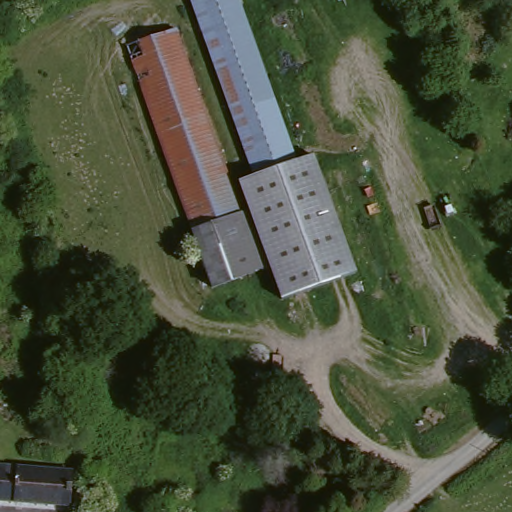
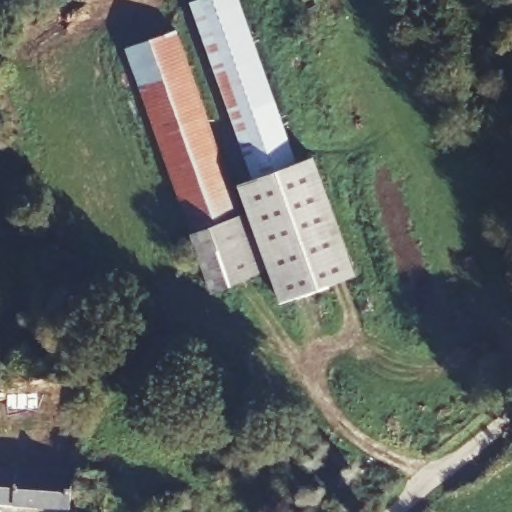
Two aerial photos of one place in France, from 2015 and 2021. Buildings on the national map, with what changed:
unchanged [(270,262),(215,285),(124,42),(174,24),(234,184),(255,176),(189,0),(238,0),(299,158),(314,155),(359,272),(288,303),(270,262)]
unchanged [(49,371),(23,368),(28,323),(54,326),(49,371)]
unchanged [(74,510),(0,503),(0,470),(78,477),(74,510)]

